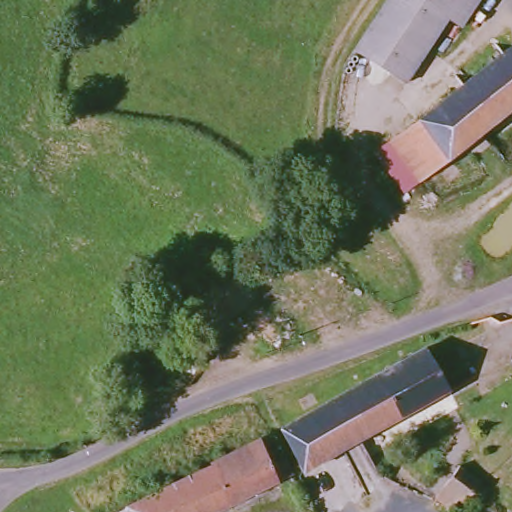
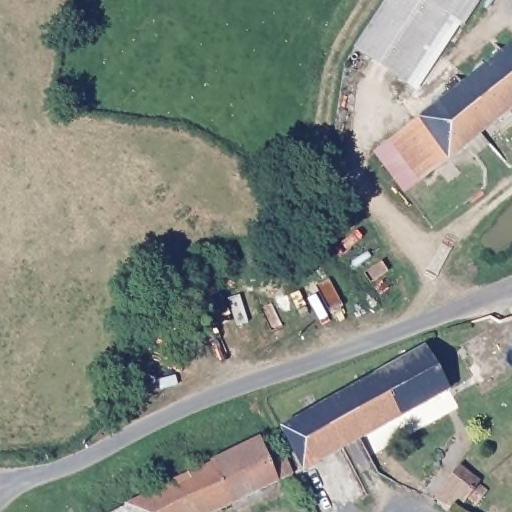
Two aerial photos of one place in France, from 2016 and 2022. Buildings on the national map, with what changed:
unchanged [(447,17),(405,83),(354,50),(386,0),(478,0),(461,27),(447,17)]
unchanged [(379,152),(512,49),(512,111),(485,133),(494,145),(480,157),(470,145),(409,192),(379,152)]
unchanged [(280,429),(425,347),(449,390),(445,392),(302,472),(280,429)]
unchanged [(214,464),(212,462),(260,438),(265,451),(279,445),(292,475),(217,512),(118,512),(214,464)]
unchanged [(459,465),(480,481),(477,484),(487,492),(476,505),(467,498),(464,502),(457,497),(450,508),(435,497),(459,465)]

